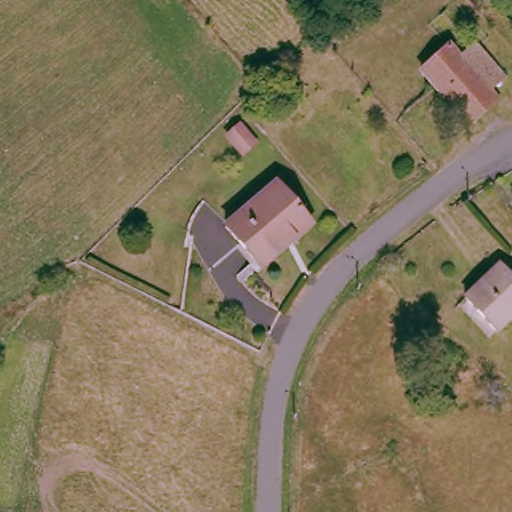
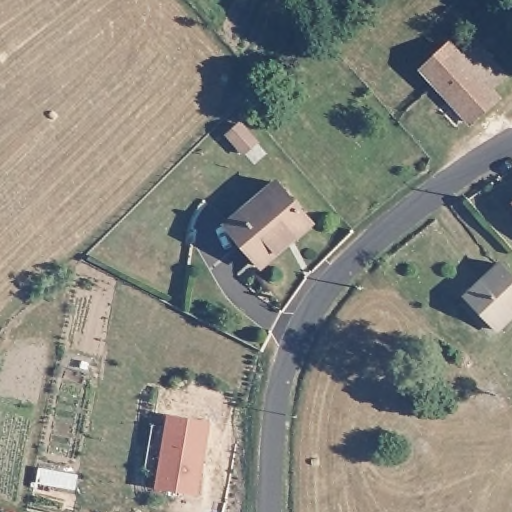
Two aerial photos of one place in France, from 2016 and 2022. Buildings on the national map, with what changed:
unchanged [(463,128),(415,75),(442,50),(453,62),(463,53),(467,49),(496,82),(492,86),(482,94),(489,103),(463,128)]
unchanged [(242,148),(226,129),(239,119),(255,138),(242,148)]
unchanged [(259,264),(230,229),(281,186),(316,229),(298,243),(265,271),(259,264)]
unchanged [(500,273),(512,285),(512,322),(495,337),(466,304),(500,273)]
new [(198,496),(155,488),(167,415),(210,423),(198,496)]

